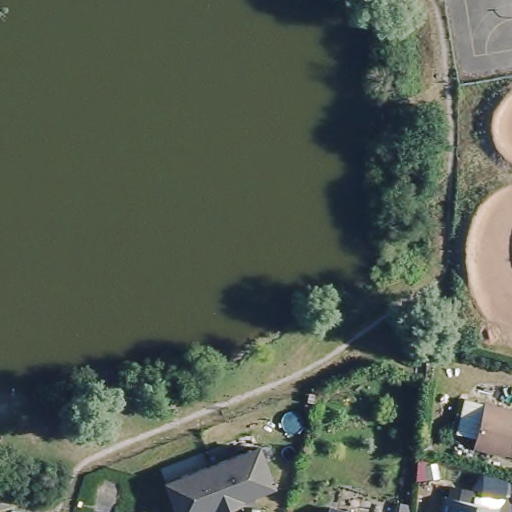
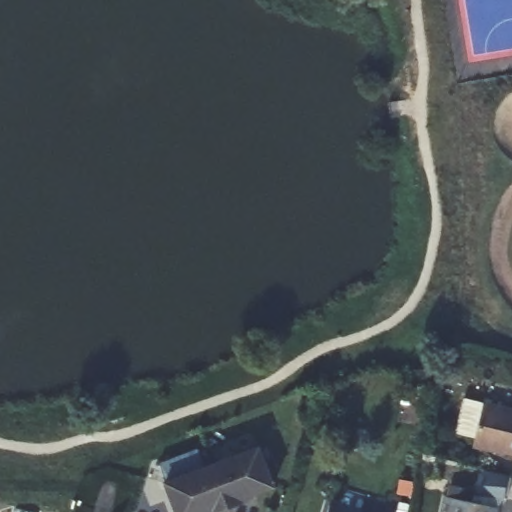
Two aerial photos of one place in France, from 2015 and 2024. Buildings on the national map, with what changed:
unchanged [(475,433),(457,428),(464,394),(512,405),(512,450),(473,441),(475,433)]
unchanged [(262,454),(277,494),(245,505),(246,509),(239,512),(177,512),(168,488),(262,454)]
unchanged [(507,480),(503,500),(486,495),(491,477),(507,480)]
unchanged [(496,507),(495,512),(442,512),(444,499),(496,507)]

